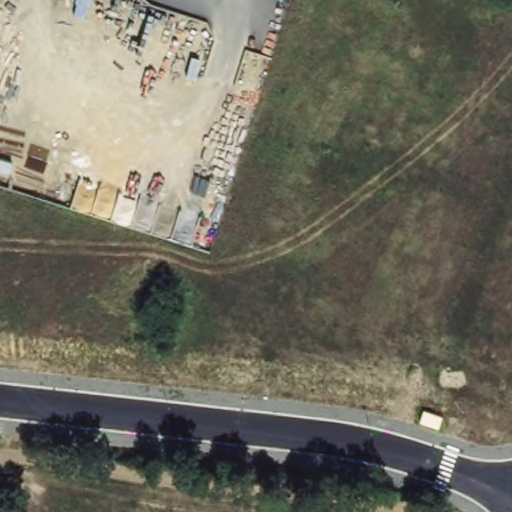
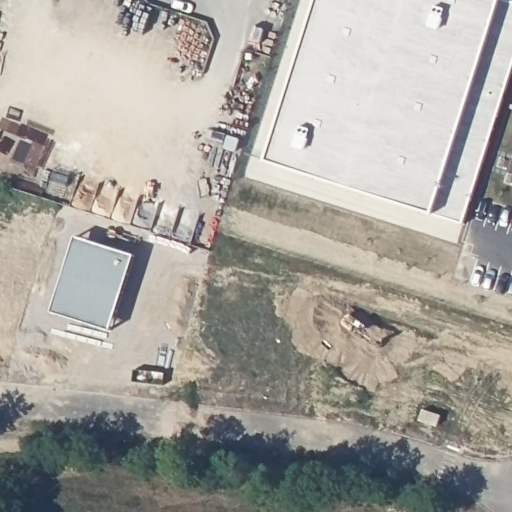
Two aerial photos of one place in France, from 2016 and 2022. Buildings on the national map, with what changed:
new [(316,0),(512,0),(512,73),(463,225),(265,161),(316,0)]

